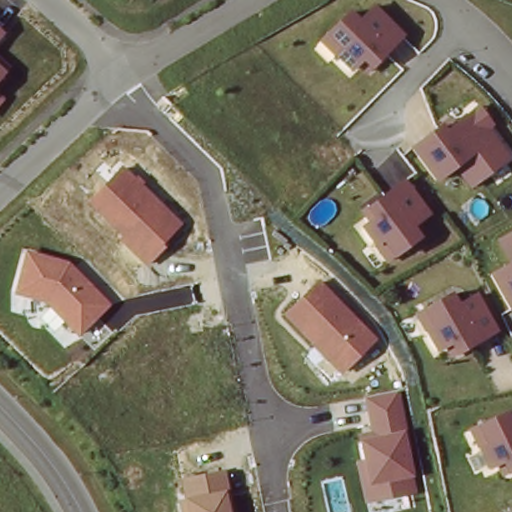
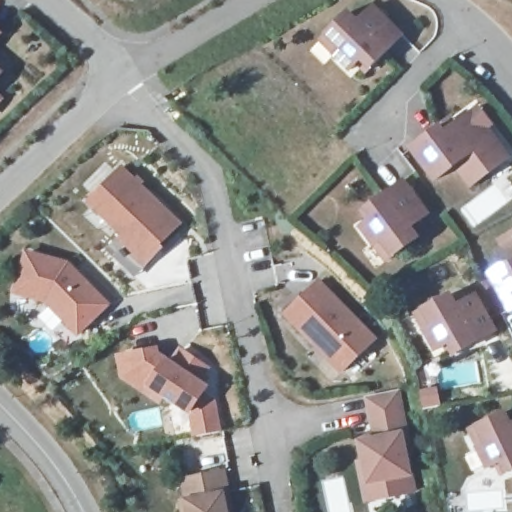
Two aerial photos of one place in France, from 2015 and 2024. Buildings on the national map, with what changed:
unchanged [(361,66),(354,73),(339,57),(326,42),(332,36),(354,16),(364,25),(379,11),(407,41),(374,71),(369,75),(361,66)]
unchanged [(0,39),(0,31),(4,35),(0,39)]
unchanged [(0,79),(0,66),(6,71),(0,79)]
unchanged [(0,100),(0,90),(4,95),(0,100)]
unchanged [(456,124),(461,130),(474,121),(483,115),(494,131),(489,135),(506,160),(474,183),(463,167),(439,185),(416,151),(446,131),(456,124)]
unchanged [(124,165),(181,224),(163,245),(166,247),(147,267),(118,240),(122,235),(88,202),(124,165)]
unchanged [(381,242),(369,224),(377,218),(370,209),(375,205),(412,180),(434,213),(417,225),(424,236),(399,254),(392,258),(381,242)]
unchanged [(508,245),(512,242),(512,253),(508,245)]
unchanged [(25,250),(68,261),(111,304),(78,335),(48,303),(13,293),(25,250)]
unchanged [(509,310),(490,275),(512,263),(512,308),(509,310)]
unchanged [(319,279),(378,336),(343,373),(284,313),(319,279)]
unchanged [(447,343),(438,347),(428,328),(419,310),(427,306),(454,292),(459,304),(479,295),(497,330),(458,350),(453,353),(447,343)]
new [(153,348),(156,353),(173,363),(182,350),(208,366),(199,380),(208,387),(205,393),(213,397),(218,432),(198,435),(192,410),(138,374),(133,352),(153,348)]
new [(434,390),(437,400),(425,403),(423,392),(434,390)]
unchanged [(413,451),(409,452),(416,491),(389,496),(386,480),(374,483),(365,442),(380,438),(371,396),(401,391),(413,451)]
unchanged [(504,466),(494,470),(486,450),(478,432),(487,428),(512,417),(512,476),(509,477),(504,466)]
unchanged [(226,470),(233,512),(180,512),(178,500),(185,499),(181,477),(226,470)]

